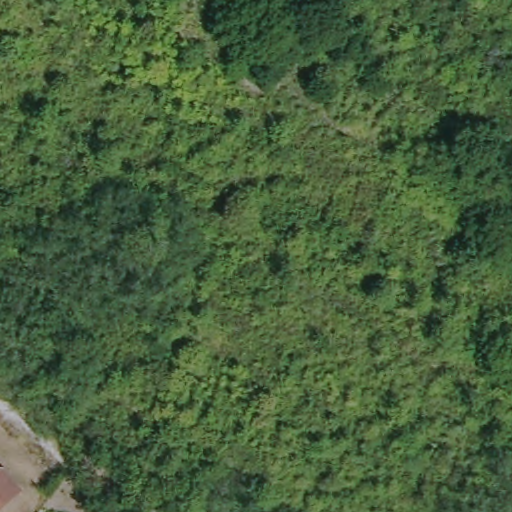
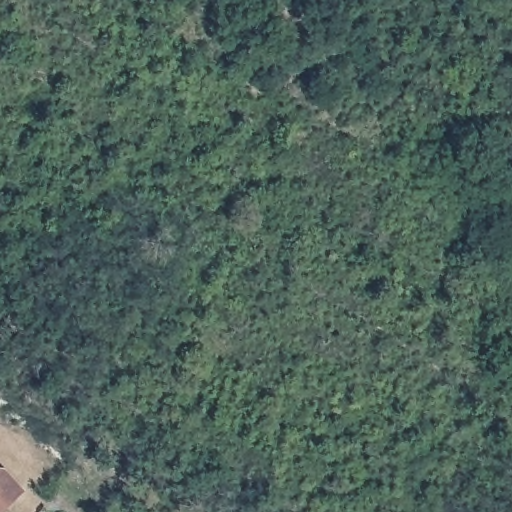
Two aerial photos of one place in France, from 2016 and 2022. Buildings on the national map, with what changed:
unchanged [(9,476),(27,493),(8,512),(0,512),(0,463),(1,474),(9,476)]

